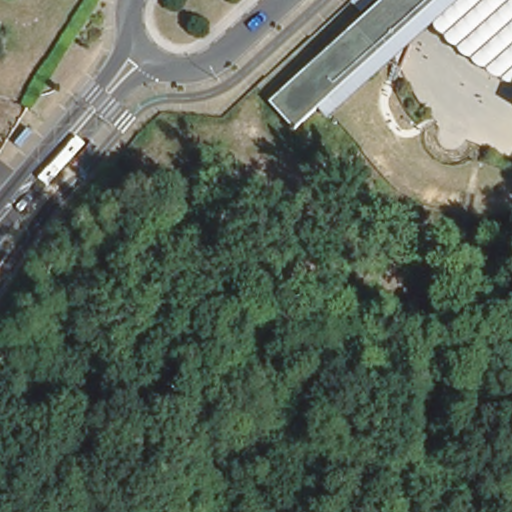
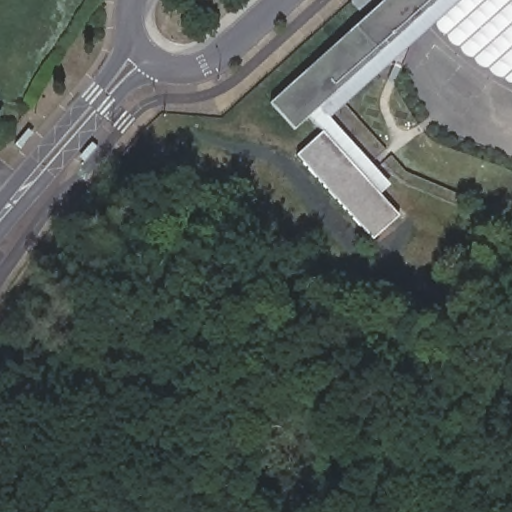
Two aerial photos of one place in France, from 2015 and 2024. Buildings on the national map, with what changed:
unchanged [(512,80),(509,86),(500,81),(484,69),(471,60),(456,50),(443,37),(432,25),(326,118),(315,110),(307,117),(292,131),(267,103),(381,0),(512,0),(512,80)]
new [(322,133),(307,117),(315,110),(326,118),(389,185),(379,195),(399,216),(373,239),(298,155),(322,133)]

